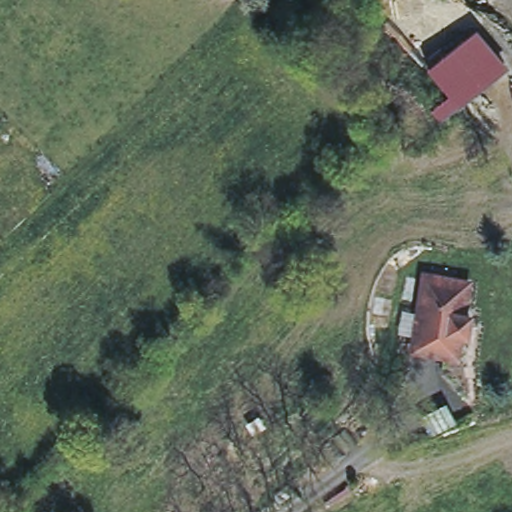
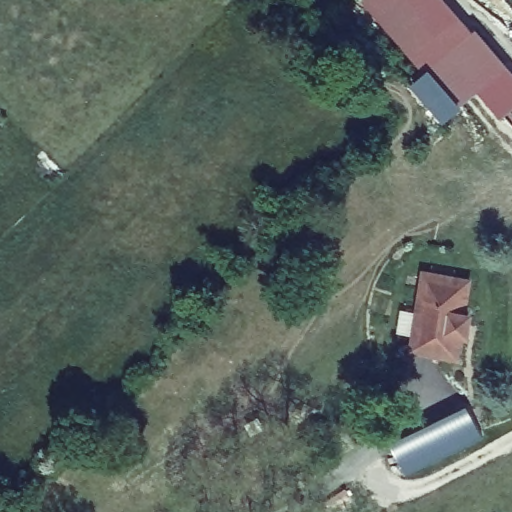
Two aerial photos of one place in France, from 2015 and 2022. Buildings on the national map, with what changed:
new [(423,74),(363,0),(449,0),(475,31),(423,74)]
unchanged [(508,66),(435,121),(407,86),(478,30),(508,66)]
new [(512,107),(502,115),(478,89),(508,66),(512,70),(512,107)]
unchanged [(466,280),(461,311),(467,312),(463,332),(457,331),(454,355),(413,348),(425,272),(466,280)]
new [(485,438),(406,476),(389,442),(467,403),(485,438)]

